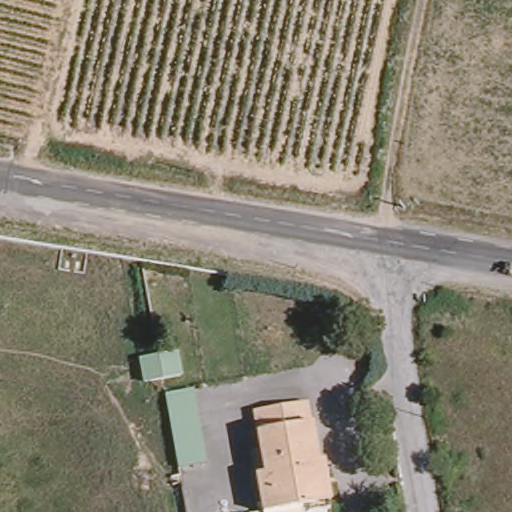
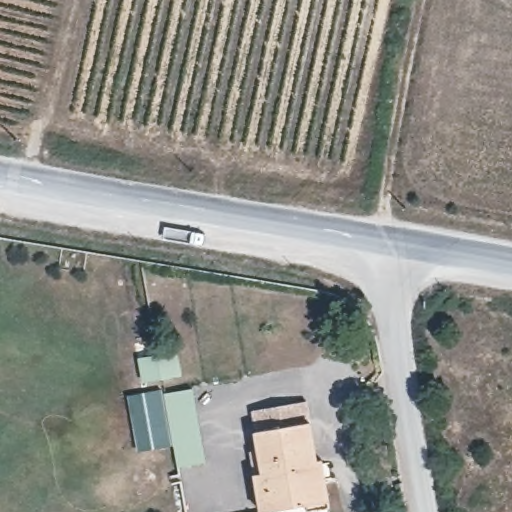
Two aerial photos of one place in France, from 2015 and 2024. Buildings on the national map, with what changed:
unchanged [(135,358),(176,351),(180,374),(140,381),(135,358)]
new [(138,452),(127,395),(160,389),(161,397),(170,445),(138,452)]
unchanged [(161,397),(193,391),(205,464),(174,470),(161,397)]
unchanged [(311,503),(263,510),(257,473),(262,471),(254,431),(258,431),(254,409),(304,400),(307,419),(310,420),(316,458),(323,457),(329,508),(317,512),(312,512),(311,503)]

